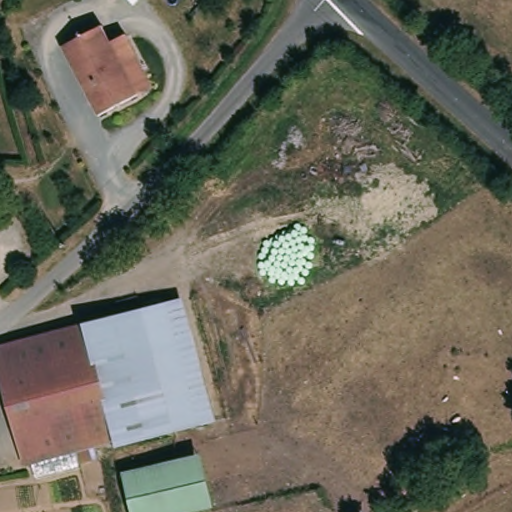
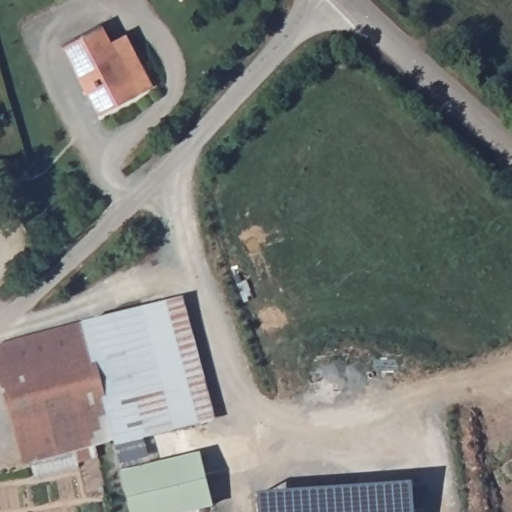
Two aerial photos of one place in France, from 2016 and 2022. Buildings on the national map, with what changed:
unchanged [(156,85),(141,92),(100,114),(65,45),(105,23),(125,63),(140,55),(156,85)]
unchanged [(84,321),(181,294),(208,400),(212,418),(117,443),(115,433),(84,321)]
unchanged [(84,321),(115,433),(99,437),(100,447),(76,454),(73,446),(42,453),(20,458),(0,378),(0,342),(84,321)]
unchanged [(175,512),(129,512),(120,474),(197,453),(210,502),(175,512)]
new [(414,484),(416,512),(260,512),(259,494),(414,484)]

